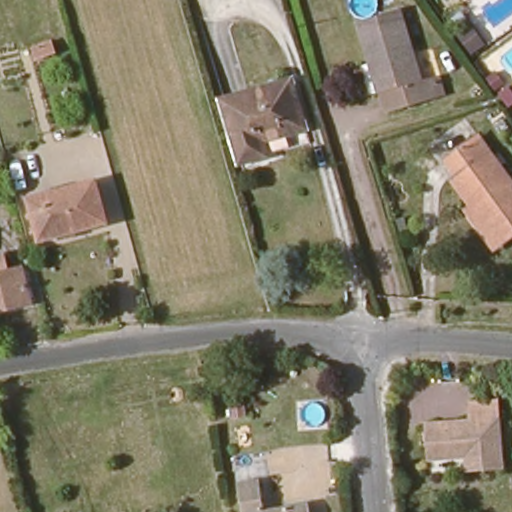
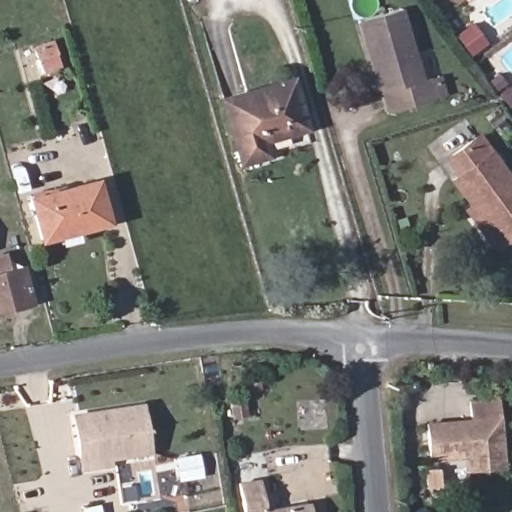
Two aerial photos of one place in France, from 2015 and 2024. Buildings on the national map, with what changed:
unchanged [(421,81),(429,78),(435,101),(386,116),(380,94),(376,96),(355,23),(400,10),(421,81)]
unchanged [(461,36),(473,27),(487,47),(475,56),(461,36)]
unchanged [(306,132),(264,146),(266,153),(240,162),(224,103),(293,81),(306,132)]
unchanged [(474,204),(454,179),(457,176),(446,159),(453,154),(478,137),(512,185),(512,235),(502,243),(494,248),(467,210),(474,204)]
unchanged [(102,222),(44,235),(33,197),(92,182),(102,222)]
unchanged [(23,307),(0,313),(0,278),(16,273),(23,307)]
unchanged [(276,358),(292,357),(295,384),(279,385),(276,358)]
unchanged [(476,419),(473,398),(502,396),(507,465),(473,467),(471,448),(464,447),(460,456),(434,456),(431,421),(476,419)]
new [(113,460),(113,466),(82,471),(72,412),(143,402),(153,453),(113,460)]
unchanged [(261,474),(266,508),(309,502),(311,512),(246,512),(242,479),(261,474)]

